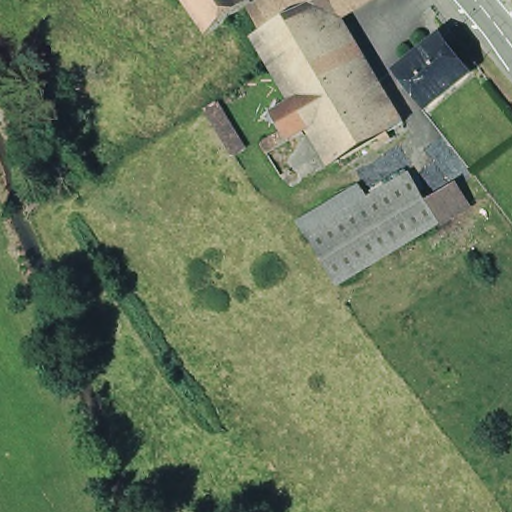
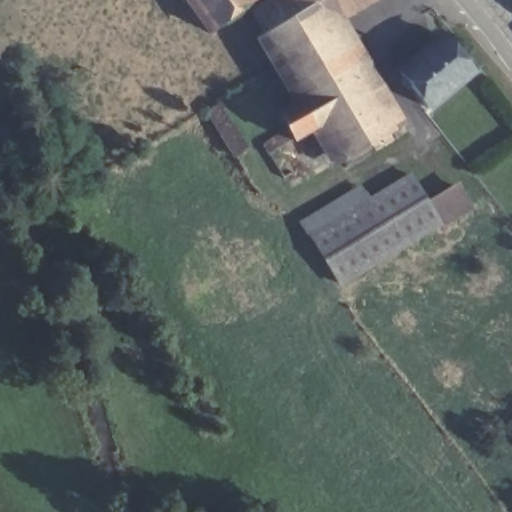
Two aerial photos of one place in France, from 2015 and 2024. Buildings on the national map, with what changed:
unchanged [(412,128),(325,178),(302,140),(286,147),(268,118),(290,105),(236,19),(204,39),(179,0),(371,0),(343,16),(412,128)]
unchanged [(465,67),(421,101),(395,66),(437,33),(465,67)]
unchanged [(333,286),(306,238),(295,224),(360,184),(370,199),(406,179),(423,208),(452,189),(464,208),(434,226),(435,227),(333,286)]

